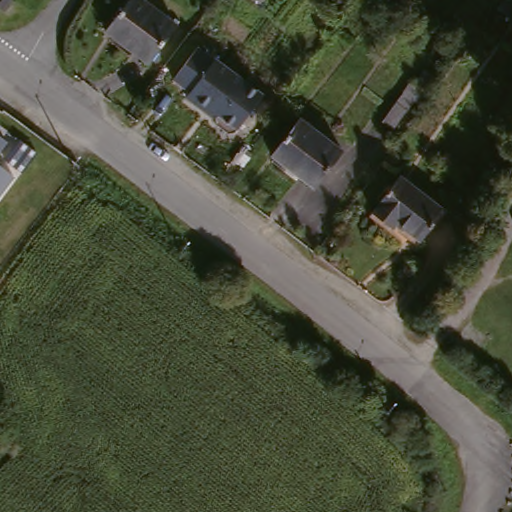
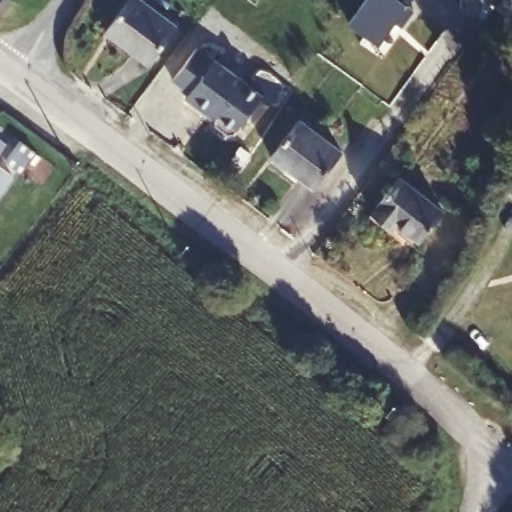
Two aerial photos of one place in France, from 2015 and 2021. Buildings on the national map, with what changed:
unchanged [(130,0),(141,0),(176,26),(149,62),(107,31),(130,0)]
new [(366,0),(411,0),(408,5),(414,9),(402,26),(396,21),(380,44),(349,23),(366,0)]
unchanged [(272,93),(246,133),(172,79),(204,43),(272,93)]
unchanged [(300,120),(341,152),(313,189),(271,157),(300,120)]
unchanged [(8,137),(0,152),(0,132),(8,137)]
unchanged [(14,171),(0,191),(0,161),(14,171)]
unchanged [(512,176),(512,188),(507,185),(512,176)]
unchanged [(390,236),(364,217),(395,177),(438,210),(414,241),(396,228),(390,236)]

